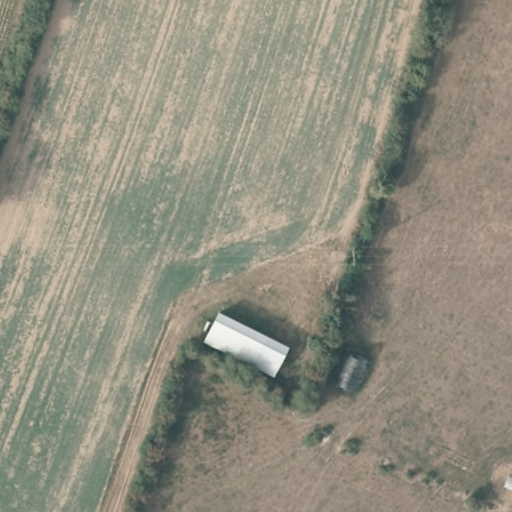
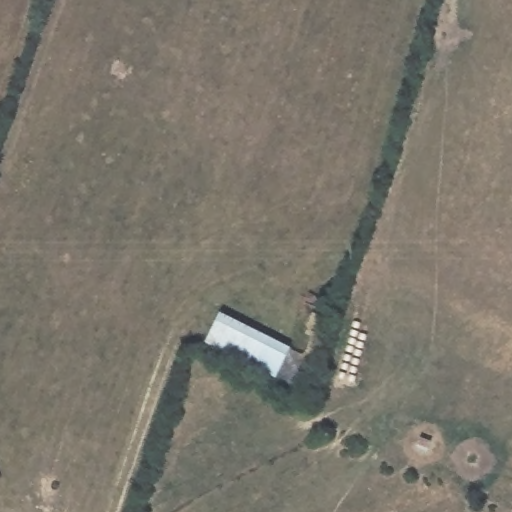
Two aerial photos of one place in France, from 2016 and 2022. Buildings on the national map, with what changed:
unchanged [(275,376),(208,342),(222,313),(288,346),(275,376)]

